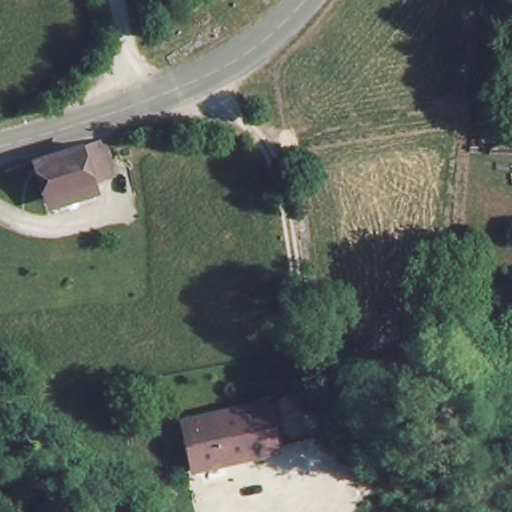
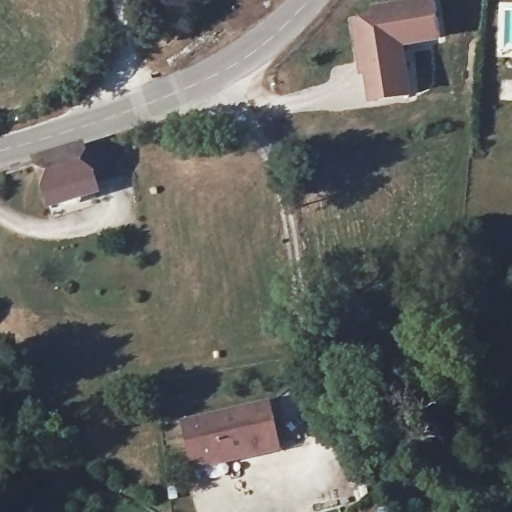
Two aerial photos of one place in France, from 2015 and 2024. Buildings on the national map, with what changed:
new [(371,104),(366,75),(361,76),(352,19),(373,14),(372,6),(403,0),(436,0),(443,41),(406,47),(414,97),(371,104)]
unchanged [(114,137),(127,177),(103,186),(104,191),(91,196),(88,191),(76,146),(114,137)]
unchanged [(76,152),(88,191),(39,204),(27,167),(76,152)]
unchanged [(192,472),(183,421),(278,403),(285,453),(192,472)]

